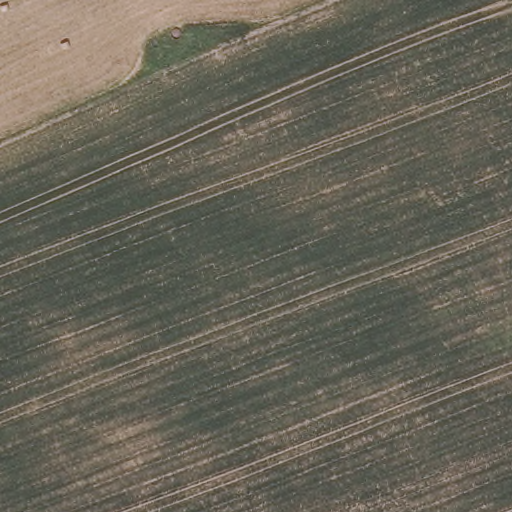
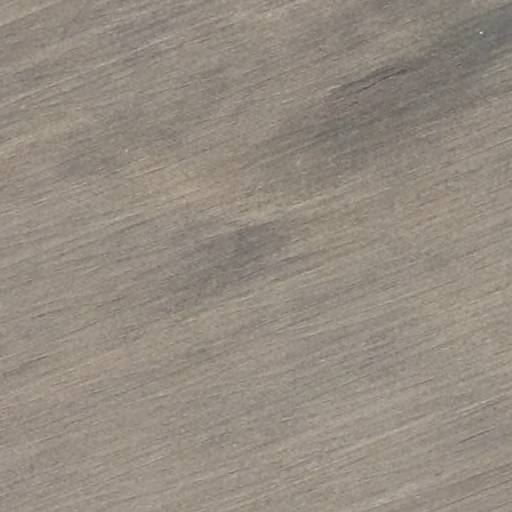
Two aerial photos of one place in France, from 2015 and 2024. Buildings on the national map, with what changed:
[]

